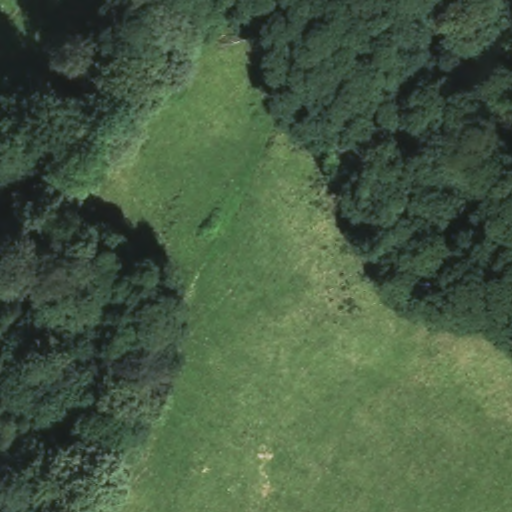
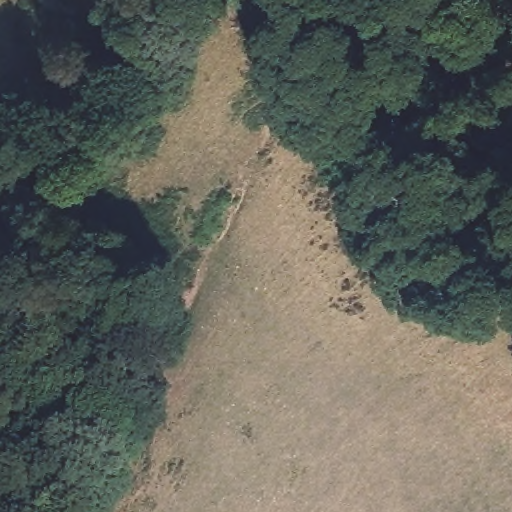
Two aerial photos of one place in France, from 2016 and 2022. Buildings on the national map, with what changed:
unchanged [(0,92),(14,73),(44,98),(9,138),(0,149),(0,92)]

